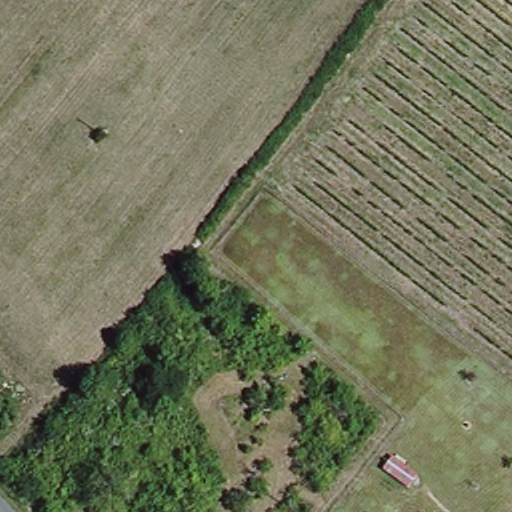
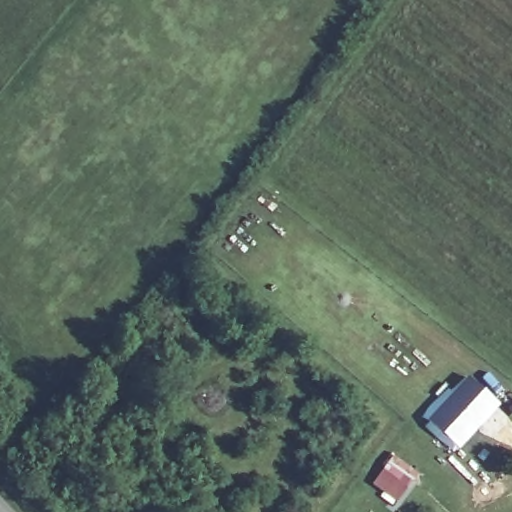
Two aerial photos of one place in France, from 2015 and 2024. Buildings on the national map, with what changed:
new [(447,383),(453,388),(470,372),(501,401),(486,421),(455,451),(420,416),(447,383)]
new [(394,453),(419,472),(396,503),(371,484),(394,453)]

